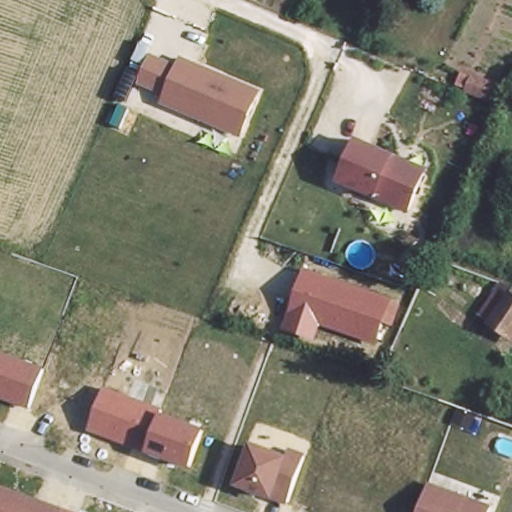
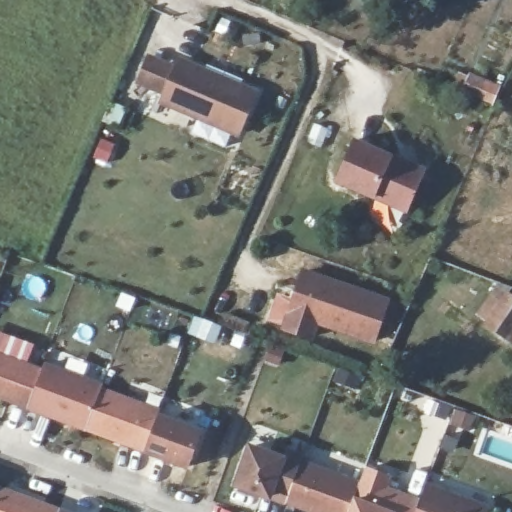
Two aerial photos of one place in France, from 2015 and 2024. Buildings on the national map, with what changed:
unchanged [(239,136),(158,102),(162,95),(135,84),(149,54),(175,64),(179,55),(260,90),(239,136)]
unchanged [(394,155),(425,171),(409,209),(378,197),(338,180),(359,139),(394,155)]
unchanged [(292,298),(303,267),(401,303),(393,326),(382,322),(375,343),(319,325),(314,340),(281,330),(283,324),(266,318),(275,292),(292,298)]
unchanged [(504,290),(512,295),(512,327),(507,333),(485,318),(504,290)]
unchanged [(0,398),(0,353),(42,368),(28,408),(0,398)]
new [(28,408),(42,368),(45,361),(104,382),(103,386),(88,430),(28,408)]
unchanged [(189,465),(88,430),(103,386),(161,407),(160,412),(202,428),(189,465)]
unchanged [(286,503),(235,486),(249,443),(285,455),(288,447),(304,453),(286,503)]
new [(302,460),(360,480),(349,512),(308,512),(286,503),(302,460)]
new [(367,465),(390,476),(387,486),(422,498),(416,512),(349,512),(360,480),(367,465)]
unchanged [(489,512),(416,512),(428,480),(492,505),(489,512)]
unchanged [(59,512),(0,512),(0,486),(61,508),(59,512)]
unchanged [(71,512),(59,512),(61,508),(71,512)]

